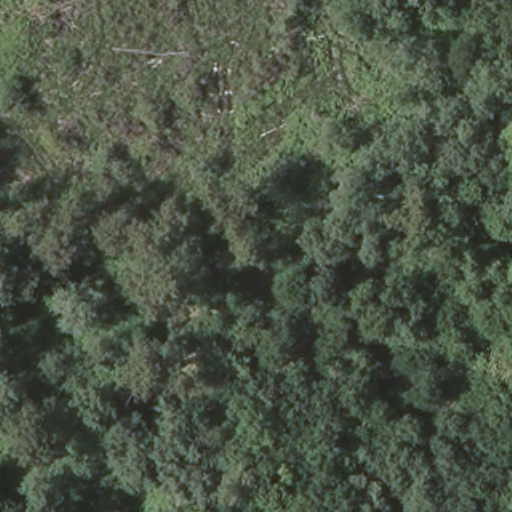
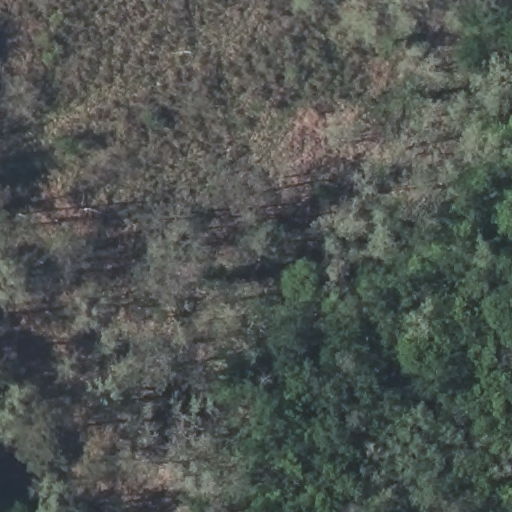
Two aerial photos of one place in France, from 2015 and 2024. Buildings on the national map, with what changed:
[]

